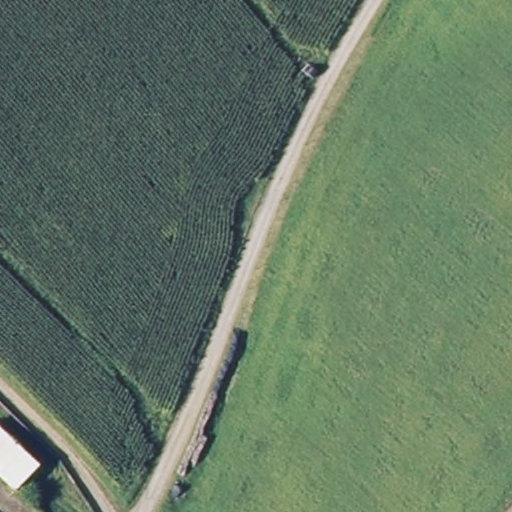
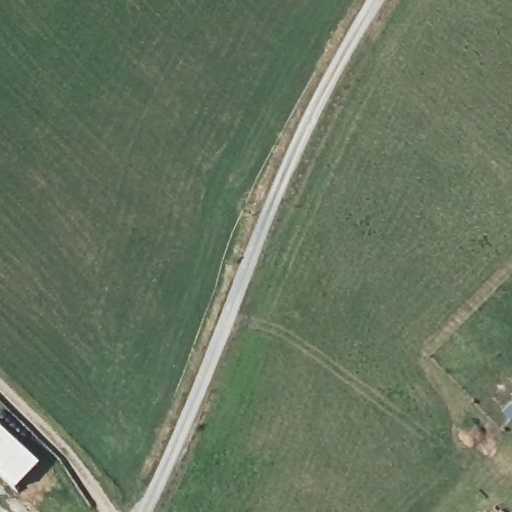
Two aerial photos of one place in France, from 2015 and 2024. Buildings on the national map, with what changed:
unchanged [(17,494),(0,478),(0,425),(43,467),(17,494)]

